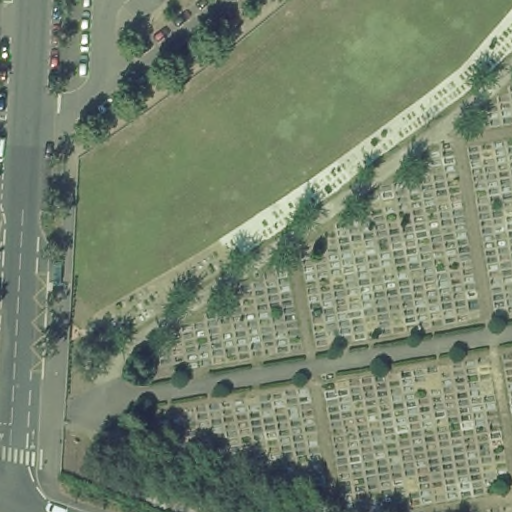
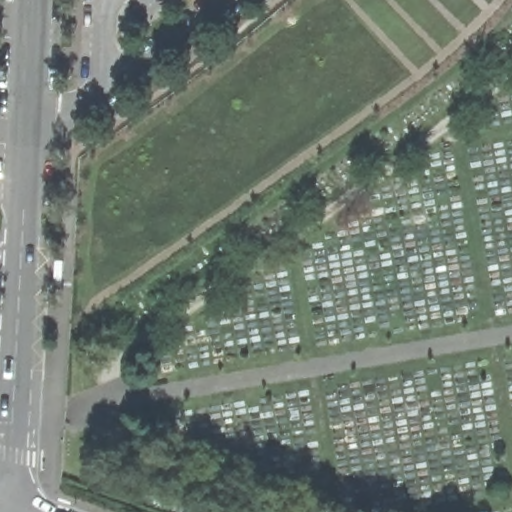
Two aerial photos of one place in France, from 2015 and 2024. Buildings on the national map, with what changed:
[]

